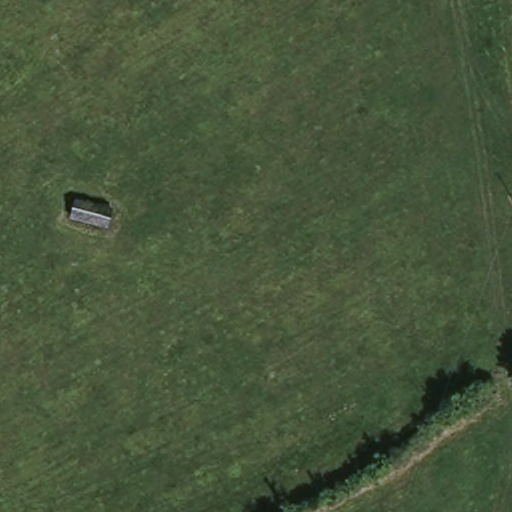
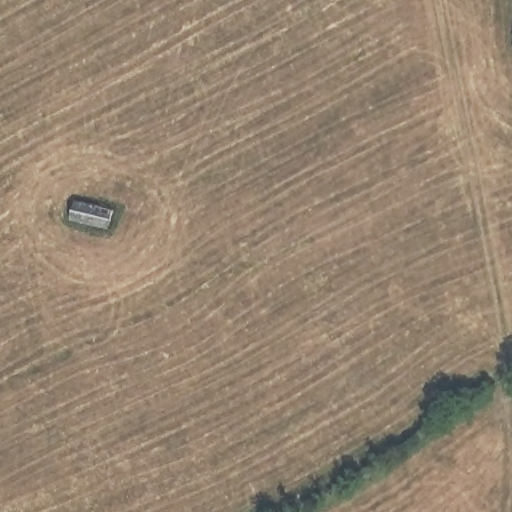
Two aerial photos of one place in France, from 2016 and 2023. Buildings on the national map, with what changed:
unchanged [(124,214),(115,232),(79,215),(88,196),(124,214)]

